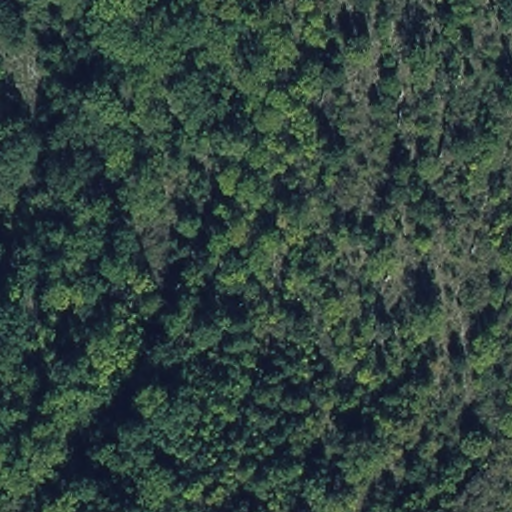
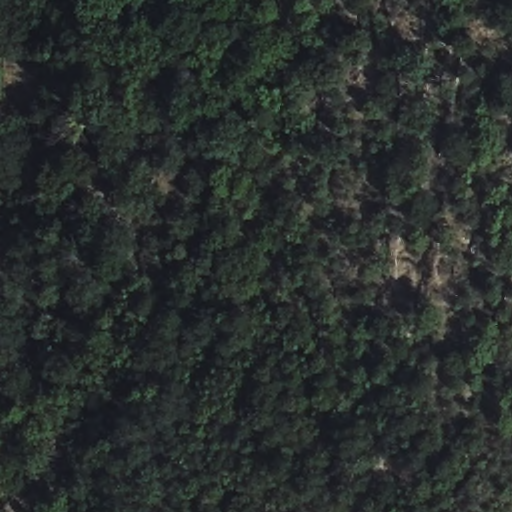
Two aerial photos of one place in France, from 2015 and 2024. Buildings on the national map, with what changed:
[]

